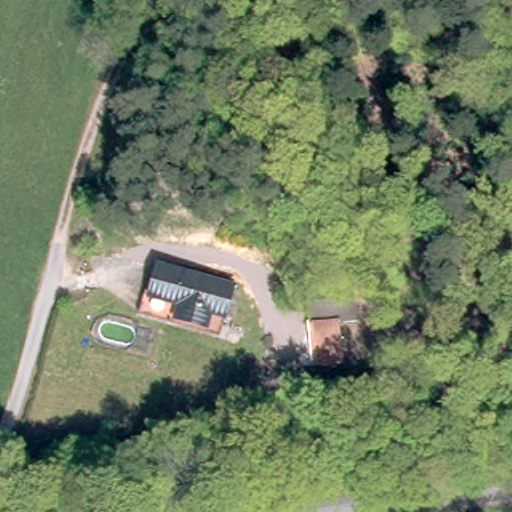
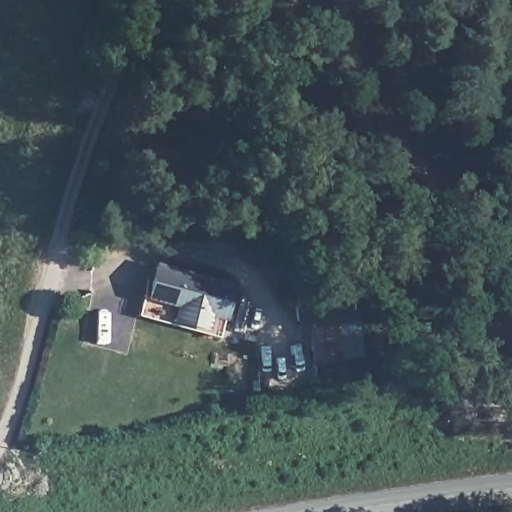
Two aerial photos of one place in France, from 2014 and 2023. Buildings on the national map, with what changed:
unchanged [(129,182),(135,162),(160,170),(153,190),(129,182)]
unchanged [(174,323),(180,304),(148,294),(158,262),(240,287),(230,319),(215,314),(208,334),(174,323)]
unchanged [(330,348),(329,394),(296,397),(297,350),(330,348)]

